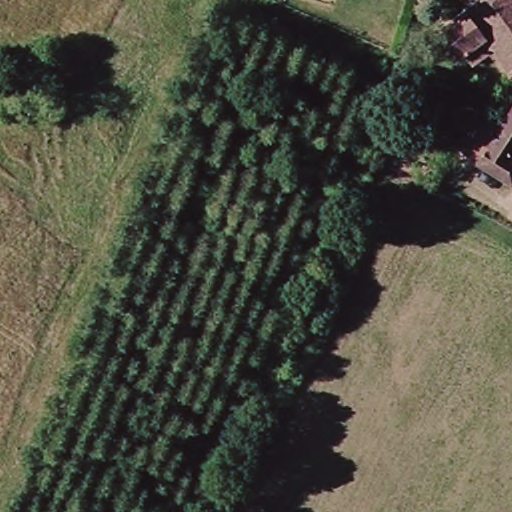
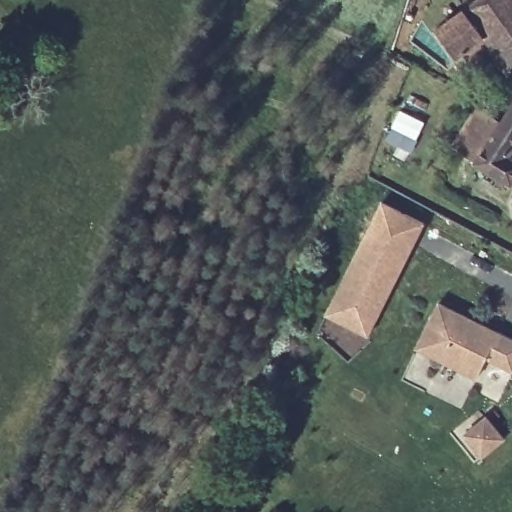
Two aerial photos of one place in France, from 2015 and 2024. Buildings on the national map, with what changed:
unchanged [(431,24),(467,0),(512,0),(512,67),(505,72),(480,35),(453,56),(431,24)]
unchanged [(506,180),(473,161),(470,160),(495,121),(498,115),(512,95),(512,141),(505,151),(512,155),(512,170),(506,180)]
unchanged [(495,121),(470,160),(447,145),(470,105),(495,121)]
new [(425,224),(368,337),(326,315),(382,202),(425,224)]
new [(485,360),(476,378),(415,348),(438,301),(512,338),(512,374),(485,360)]

